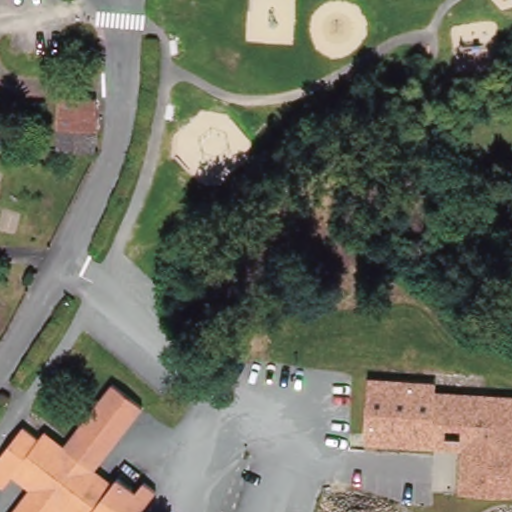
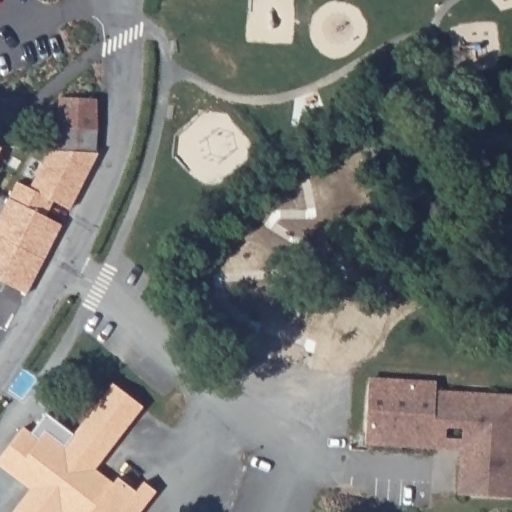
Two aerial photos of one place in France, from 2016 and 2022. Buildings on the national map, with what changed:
new [(50,152),(55,153),(57,132),(59,100),(95,102),(94,134),(91,134),(90,155),(94,156),(21,292),(0,282),(0,218),(19,184),(30,190),(50,152)]
demolished [(55,153),(57,132),(59,100),(95,102),(94,134),(91,134),(90,155),(55,153)]
unchanged [(456,495),(458,452),(363,447),(367,376),(437,382),(436,391),(512,394),(512,497),(456,495)]
unchanged [(0,463),(25,428),(40,439),(46,432),(65,446),(114,382),(144,405),(96,468),(114,482),(95,511),(94,512),(17,512),(34,490),(16,477),(6,490),(0,485),(0,463)]
unchanged [(114,482),(119,475),(139,489),(145,480),(158,490),(141,512),(94,512),(95,511),(114,482)]

